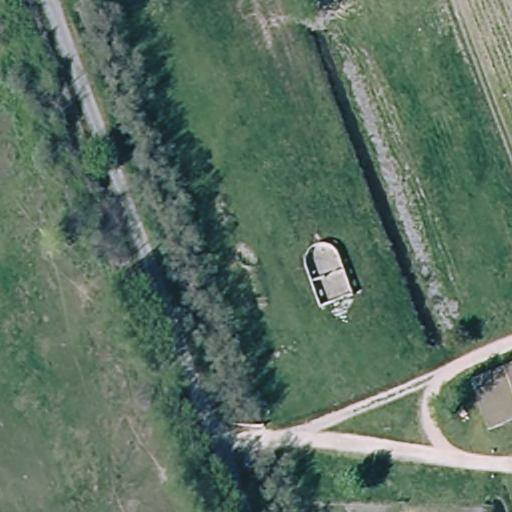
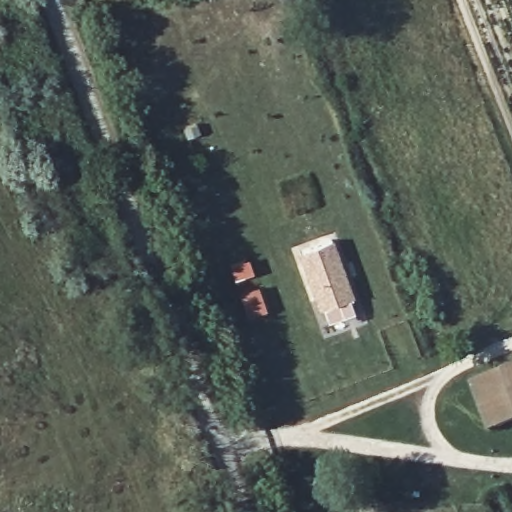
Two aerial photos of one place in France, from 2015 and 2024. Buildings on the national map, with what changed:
new [(333,239),(355,295),(318,309),(297,252),(333,239)]
unchanged [(473,381),(512,366),(512,426),(493,433),(473,381)]

